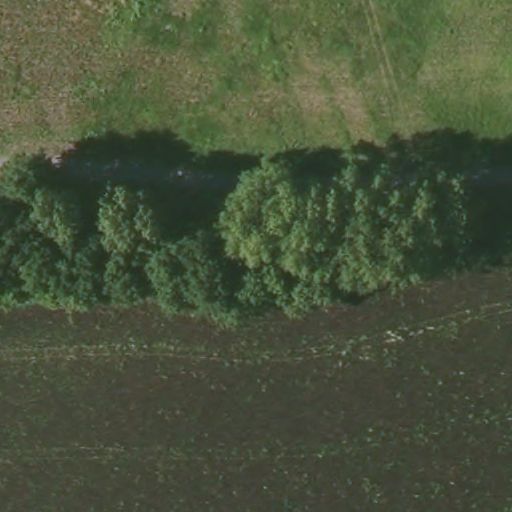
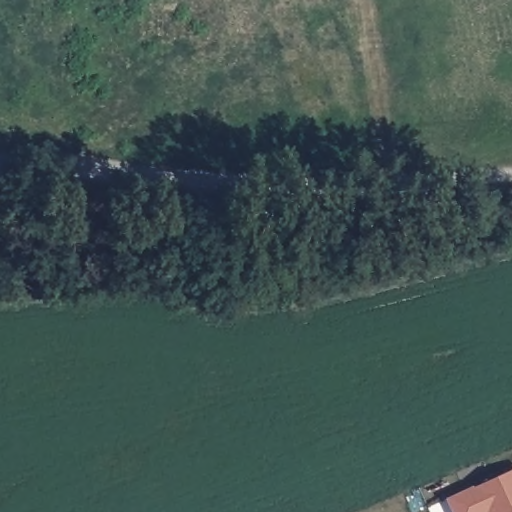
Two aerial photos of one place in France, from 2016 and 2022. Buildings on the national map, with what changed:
new [(512,469),(512,512),(452,512),(447,500),(512,469)]

